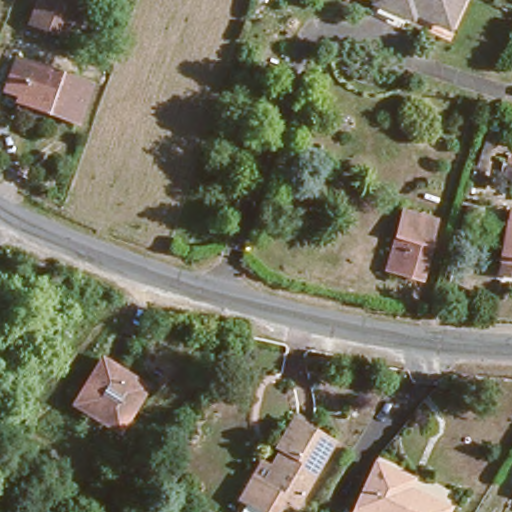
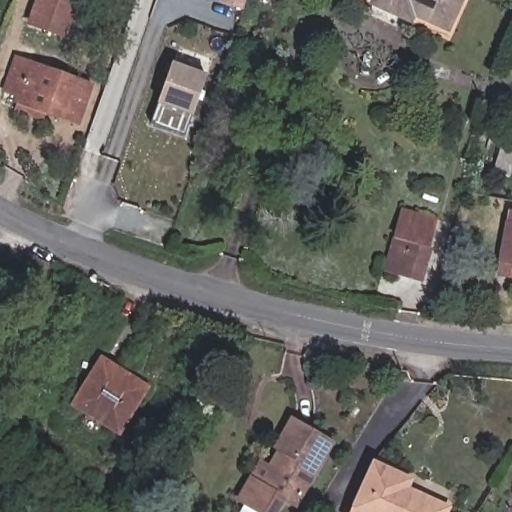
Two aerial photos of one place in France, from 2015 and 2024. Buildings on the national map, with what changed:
unchanged [(65,25),(63,32),(33,21),(40,0),(99,0),(88,32),(65,25)]
new [(220,3),(220,0),(247,0),(244,10),(220,3)]
unchanged [(410,5),(406,14),(378,0),(452,0),(445,20),(410,5)]
unchanged [(11,100),(15,88),(17,84),(3,77),(14,46),(94,75),(79,110),(45,99),(41,112),(11,100)]
new [(208,73),(193,116),(157,104),(173,61),(208,73)]
unchanged [(386,267),(390,251),(404,203),(439,212),(423,260),(417,275),(386,267)]
unchanged [(508,209),(512,209),(512,263),(501,260),(508,209)]
unchanged [(45,268),(40,278),(20,270),(25,259),(45,268)]
unchanged [(143,391),(126,420),(111,425),(73,403),(98,357),(136,377),(143,391)]
unchanged [(274,469),(284,449),(275,444),(288,420),(325,437),(296,499),(288,497),(279,512),(263,512),(243,500),(256,477),(263,462),(274,469)]
unchanged [(404,480),(400,491),(443,509),(441,512),(358,512),(352,510),(369,466),(404,480)]

